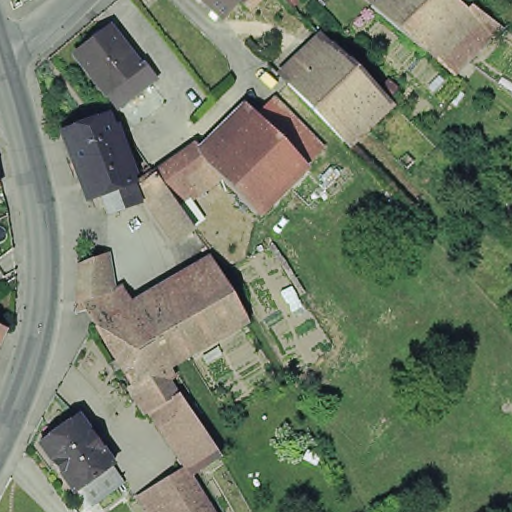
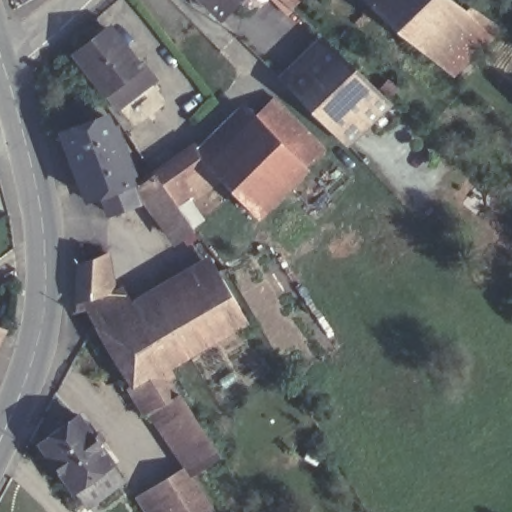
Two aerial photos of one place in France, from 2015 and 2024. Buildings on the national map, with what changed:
unchanged [(218,21),(196,0),(239,0),(218,21)]
unchanged [(285,12),(270,0),(297,0),(285,12)]
unchanged [(377,0),(441,0),(460,17),(422,54),(420,56),(366,11),(377,0)]
unchanged [(465,11),(493,32),(447,76),(422,54),(460,17),(465,11)]
unchanged [(73,45),(105,21),(132,56),(145,74),(112,97),(99,81),(73,45)]
unchanged [(395,107),(350,147),(295,91),(293,89),(334,50),(395,107)]
unchanged [(385,94),(392,87),(400,95),(392,101),(385,94)]
unchanged [(311,131),(330,150),(314,166),(265,214),(215,164),(265,116),(280,101),(311,131)]
unchanged [(142,171),(135,173),(145,204),(117,213),(111,195),(98,198),(74,134),(116,116),(132,164),(140,162),(142,171)]
unchanged [(160,204),(148,189),(165,176),(206,146),(212,160),(215,164),(227,181),(188,209),(203,229),(186,241),(160,204)]
unchanged [(72,318),(74,272),(101,261),(105,297),(113,297),(125,327),(97,342),(82,316),(72,318)]
unchanged [(177,447),(148,406),(137,412),(123,392),(125,391),(97,342),(125,327),(210,278),(237,326),(143,381),(151,393),(165,386),(170,396),(198,437),(177,447)]
unchanged [(80,502),(70,487),(35,438),(73,411),(107,460),(106,461),(117,476),(80,502)]
unchanged [(180,473),(204,512),(180,512),(162,484),(180,473)]
unchanged [(180,512),(157,512),(146,495),(162,484),(180,512)]

